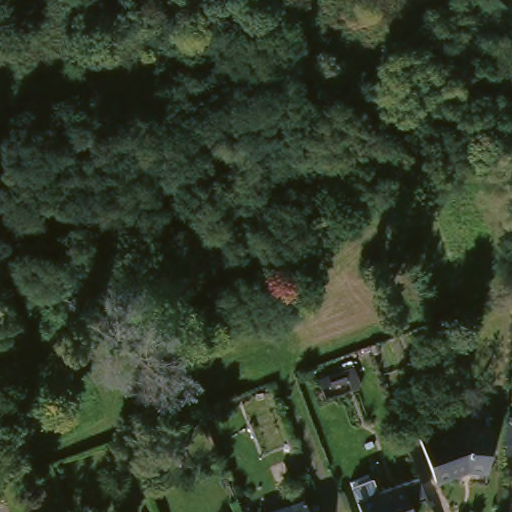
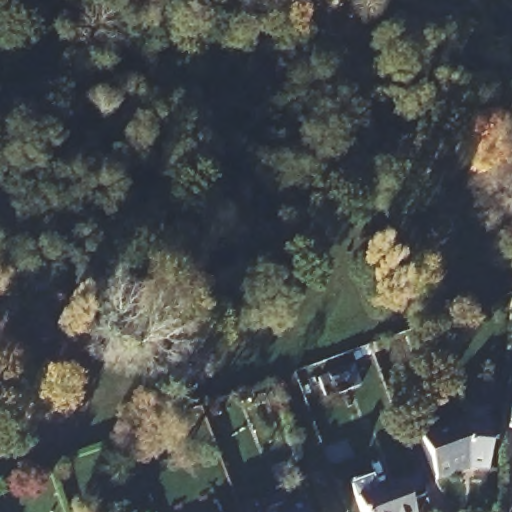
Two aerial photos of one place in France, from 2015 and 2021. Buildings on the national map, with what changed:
unchanged [(327,376),(341,370),(346,381),(333,387),(327,376)]
unchanged [(268,407),(260,386),(274,381),(282,402),(268,407)]
unchanged [(428,431),(472,415),(500,417),(497,462),(475,461),(445,472),(428,431)]
unchanged [(371,485),(376,498),(400,489),(413,484),(421,502),(407,508),(408,512),(360,512),(357,505),(352,492),(371,485)]
unchanged [(311,512),(282,512),(307,502),(311,512)]

